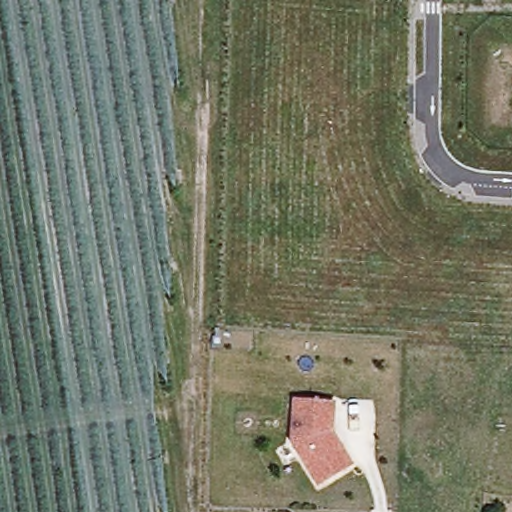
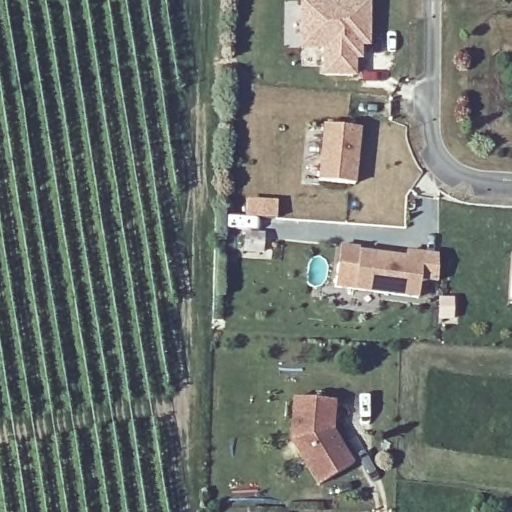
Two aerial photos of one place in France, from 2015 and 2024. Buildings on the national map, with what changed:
new [(303,0),(369,1),(368,44),(361,43),(360,57),(355,57),(354,74),(324,73),(325,47),(319,47),(302,46),(302,29),(303,0)]
new [(326,124),(361,128),(354,183),(319,180),(326,124)]
new [(245,219),(246,199),(278,201),(275,234),(264,233),(263,255),(242,254),(250,219),(245,219)]
new [(358,267),(360,251),(377,253),(399,256),(407,257),(407,252),(439,256),(439,279),(421,276),(418,297),(335,286),(338,264),(358,267)]
new [(512,297),(511,297),(512,283),(512,297)]
unchanged [(289,443),(291,398),(335,403),(333,429),(355,463),(318,488),(289,443)]

